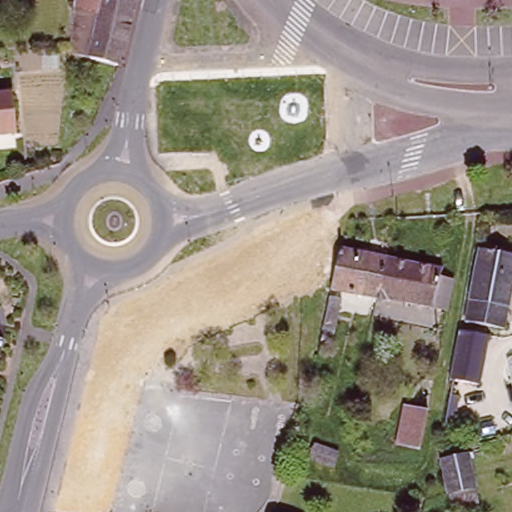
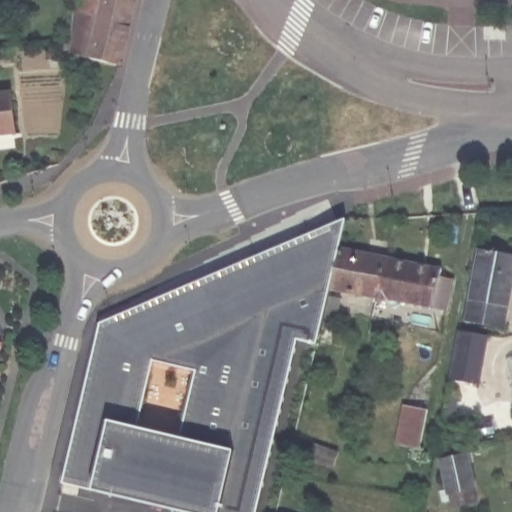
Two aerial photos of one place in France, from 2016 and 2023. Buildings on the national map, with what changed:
unchanged [(75,0),(102,0),(89,58),(70,54),(71,43),(75,0)]
unchanged [(120,66),(89,58),(102,0),(136,0),(120,66)]
demolished [(298,79),(320,77),(320,78),(322,77),(322,80),(321,80),(322,89),(320,89),(322,101),(322,106),(322,119),(323,119),(324,124),(322,124),(323,136),(324,136),(325,146),(325,147),(323,147),(301,149),(301,147),(158,154),(155,85),(298,79)]
unchanged [(12,92),(16,132),(0,134),(0,94),(12,92)]
new [(152,361),(138,428),(110,422),(94,490),(63,482),(100,322),(345,218),(340,247),(337,262),(330,288),(317,344),(297,340),(256,512),(220,512),(235,451),(182,438),(198,371),(152,361)]
demolished [(55,512),(102,316),(317,219),(335,262),(142,349),(103,512),(55,512)]
unchanged [(376,297),(331,289),(330,288),(337,262),(340,247),(386,256),(376,297)]
unchanged [(512,253),(512,286),(504,328),(465,321),(477,247),(512,253)]
unchanged [(440,277),(452,279),(444,310),(387,297),(387,300),(376,297),(386,256),(441,267),(440,277)]
demolished [(332,331),(322,328),(330,295),(341,298),(332,331)]
unchanged [(490,333),(480,382),(449,376),(459,326),(490,333)]
unchanged [(399,450),(406,410),(427,413),(419,453),(399,450)]
new [(220,512),(186,512),(94,490),(110,422),(138,428),(182,438),(235,451),(220,512)]
unchanged [(334,450),(339,452),(332,466),(332,467),(308,458),(314,442),(334,450)]
unchanged [(453,509),(450,494),(441,459),(467,452),(475,488),(479,503),(453,509)]

